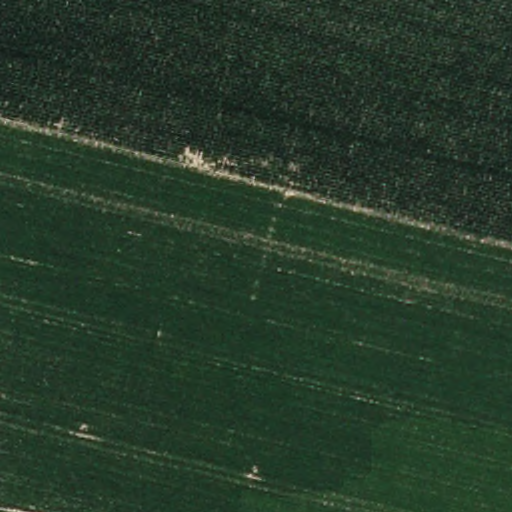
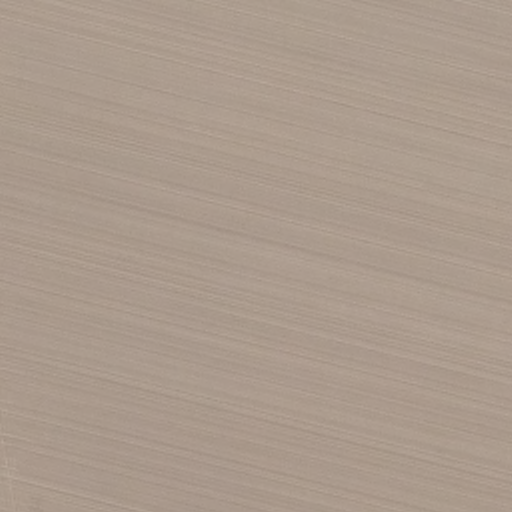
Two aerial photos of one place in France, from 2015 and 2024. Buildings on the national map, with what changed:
[]

